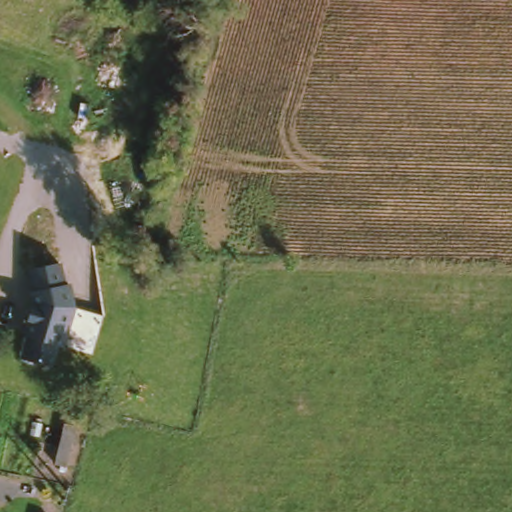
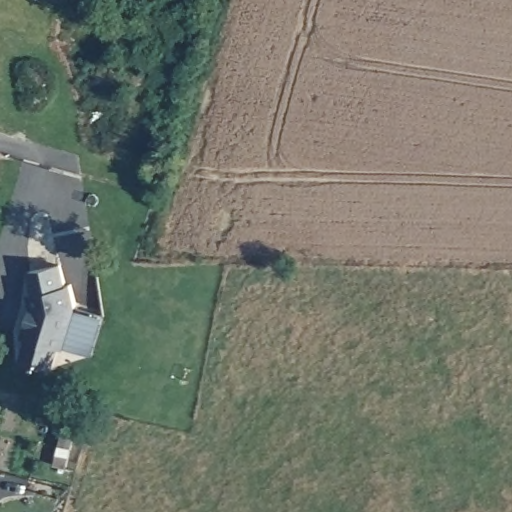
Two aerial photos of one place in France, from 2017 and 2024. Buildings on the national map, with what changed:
unchanged [(76,308),(63,348),(60,347),(54,367),(20,359),(27,321),(32,307),(31,307),(30,292),(32,292),(29,271),(62,263),(66,285),(72,284),(76,308)]
unchanged [(55,441),(45,477),(34,473),(44,438),(55,441)]

